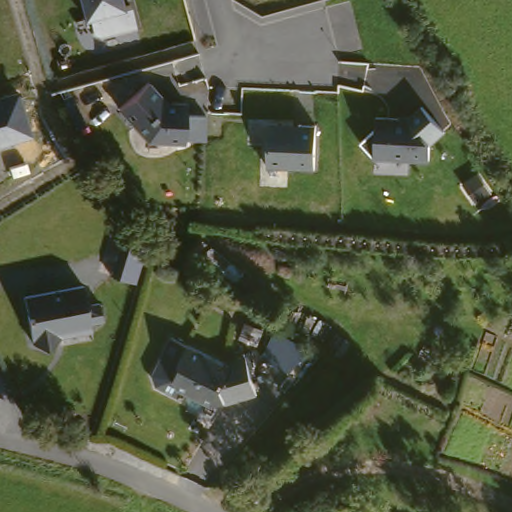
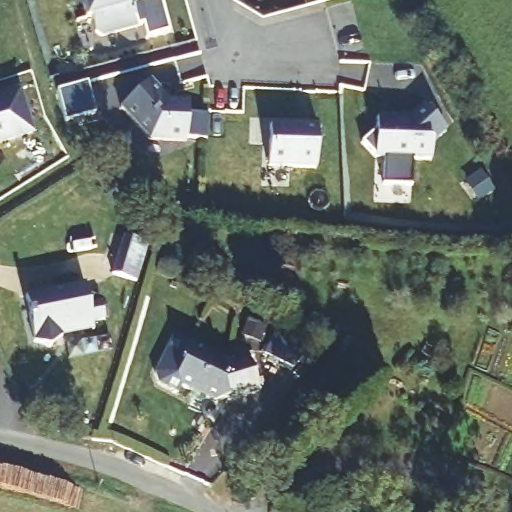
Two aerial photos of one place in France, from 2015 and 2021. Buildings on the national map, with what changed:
unchanged [(123,2),(130,0),(135,25),(99,33),(94,16),(85,19),(80,0),(123,0),(123,2)]
unchanged [(152,83),(166,100),(186,100),(185,139),(145,137),(117,106),(152,83)]
unchanged [(31,132),(0,143),(0,96),(17,90),(31,132)]
unchanged [(362,141),(377,127),(377,115),(407,117),(420,105),(445,131),(431,140),(430,158),(374,158),(362,141)]
unchanged [(272,122),(316,121),(316,162),(271,164),(272,122)]
unchanged [(109,265),(124,228),(144,235),(130,273),(109,265)]
unchanged [(85,324),(86,328),(57,332),(57,336),(45,348),(31,335),(30,331),(25,296),(73,284),(79,282),(82,308),(93,305),(97,323),(85,324)]
unchanged [(226,400),(177,380),(192,342),(241,360),(254,350),(265,389),(226,400)]

